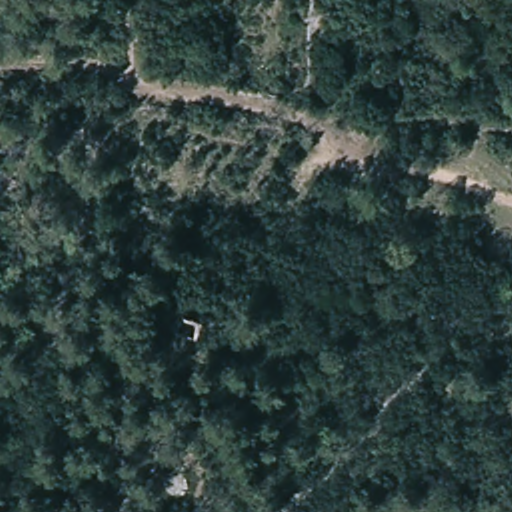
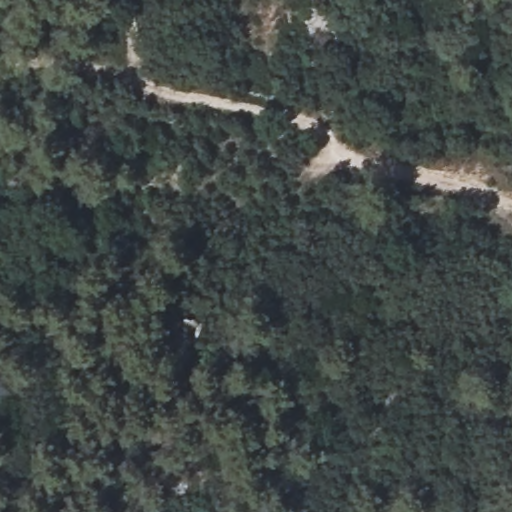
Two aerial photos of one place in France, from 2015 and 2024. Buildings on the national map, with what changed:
[]

